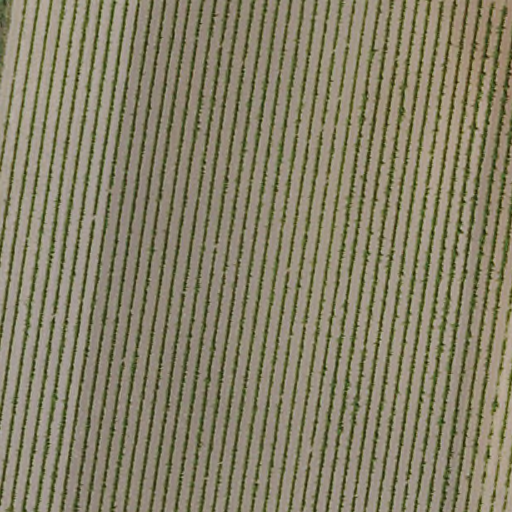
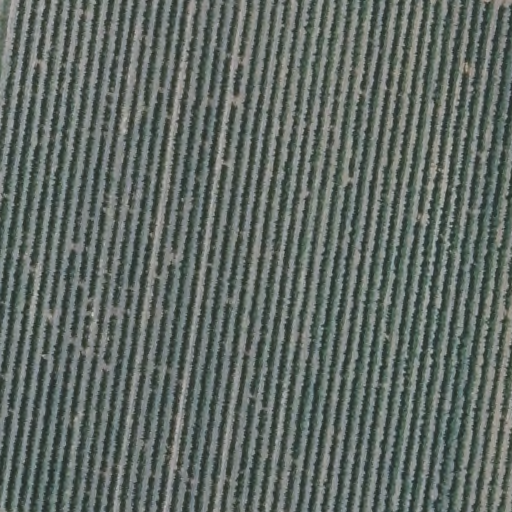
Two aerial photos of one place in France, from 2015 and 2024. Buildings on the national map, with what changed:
[]

